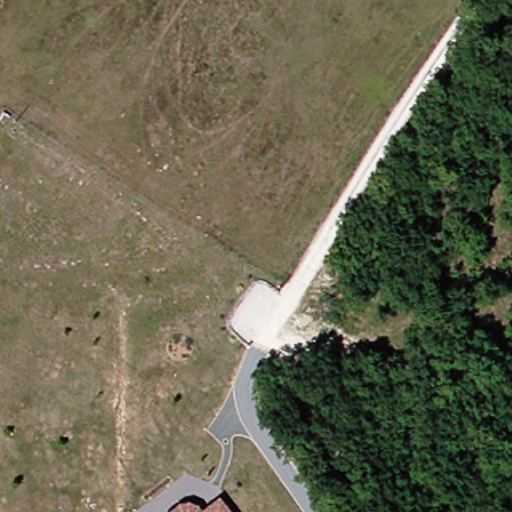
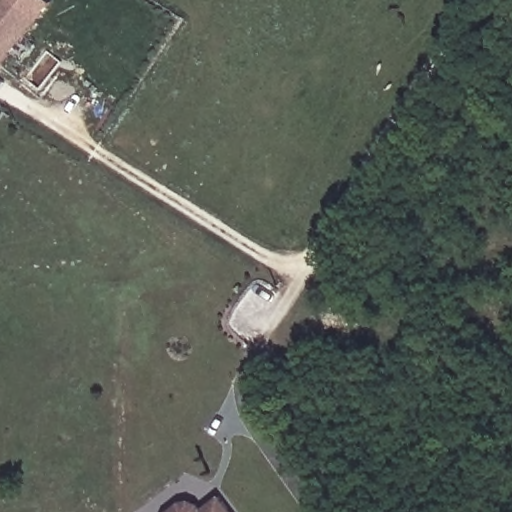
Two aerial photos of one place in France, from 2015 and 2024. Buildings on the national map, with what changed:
new [(45,0),(48,2),(0,66),(0,0),(45,0)]
unchanged [(174,505),(187,500),(195,504),(199,510),(217,496),(229,512),(164,512),(174,505)]

